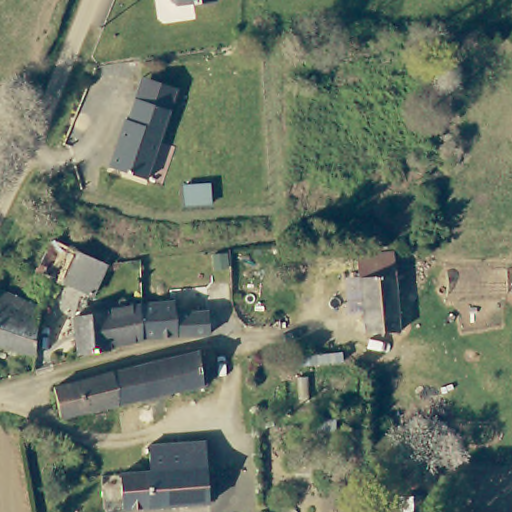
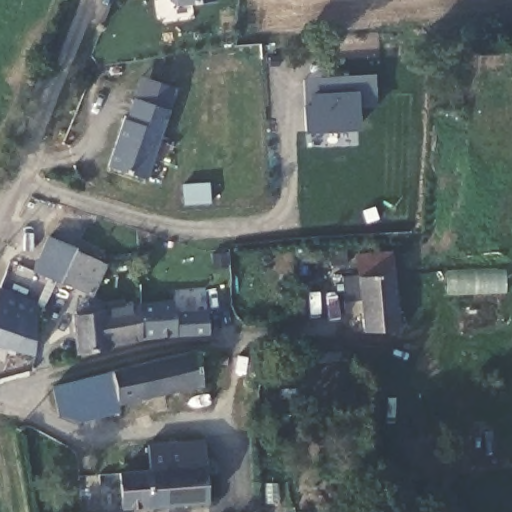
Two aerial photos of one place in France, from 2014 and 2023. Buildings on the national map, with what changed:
unchanged [(180,6),(173,0),(218,0),(219,1),(180,6)]
new [(303,104),(310,104),(310,92),(340,91),(340,76),(374,75),(376,109),(358,109),(359,130),(303,131),(303,104)]
unchanged [(126,120),(134,98),(141,76),(177,90),(169,111),(144,180),(107,166),(125,119),(126,120)]
unchanged [(58,281),(36,271),(51,238),(74,249),(104,263),(90,296),(58,281)]
unchanged [(362,331),(357,275),(355,255),(391,254),(393,274),(397,331),(362,331)]
unchanged [(0,290),(38,307),(34,355),(0,346),(0,290)]
unchanged [(177,301),(177,313),(211,311),(210,308),(224,307),(227,332),(145,338),(144,303),(177,301)]
unchanged [(115,345),(114,348),(82,352),(76,316),(144,303),(145,338),(115,345)]
unchanged [(196,350),(202,385),(116,405),(110,371),(196,350)]
unchanged [(52,386),(110,371),(116,405),(59,417),(52,386)]
unchanged [(146,443),(203,440),(204,466),(148,471),(146,443)]
unchanged [(96,454),(98,468),(83,472),(81,455),(96,454)]
unchanged [(207,502),(134,507),(131,472),(148,471),(204,466),(207,502)]

